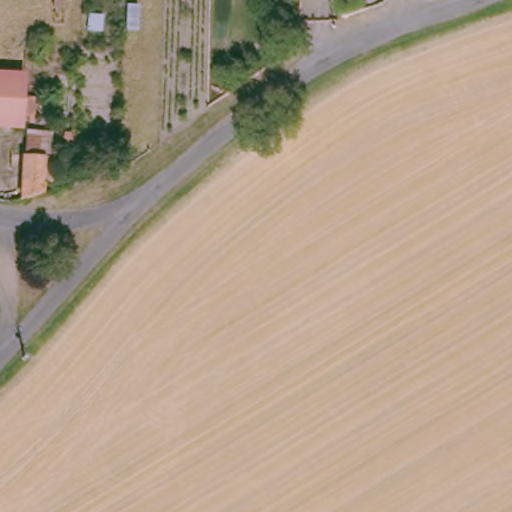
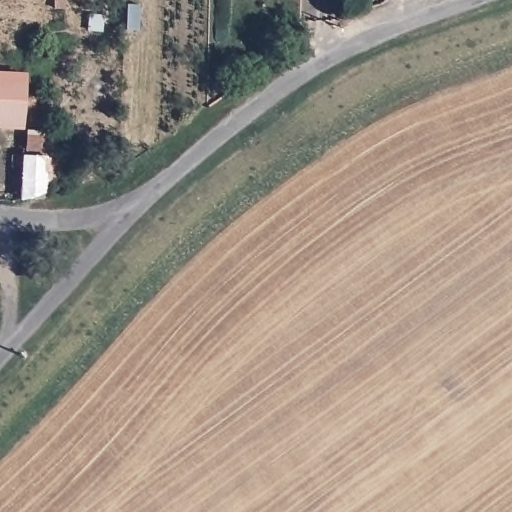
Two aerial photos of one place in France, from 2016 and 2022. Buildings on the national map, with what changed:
unchanged [(25,98),(37,99),(37,114),(24,113),(23,124),(0,123),(0,75),(25,75),(25,98)]
unchanged [(11,203),(7,192),(22,185),(22,156),(44,156),(45,193),(11,203)]

